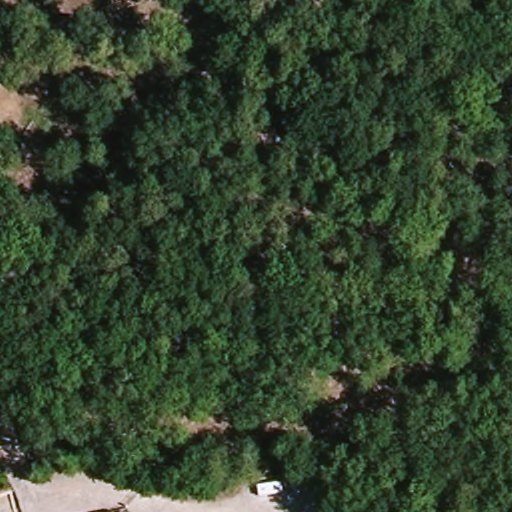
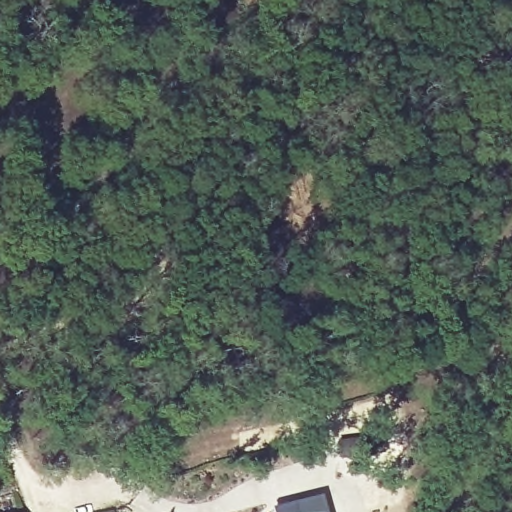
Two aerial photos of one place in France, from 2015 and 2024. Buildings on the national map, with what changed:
new [(272,507),(320,494),(325,512),(273,512),(272,507)]

